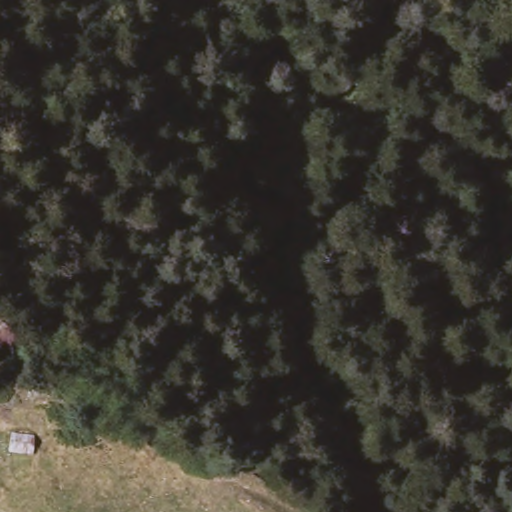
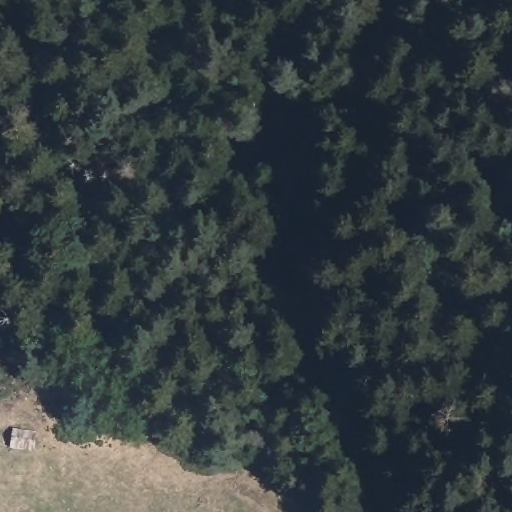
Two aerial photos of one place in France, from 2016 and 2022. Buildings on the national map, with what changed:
unchanged [(32,458),(4,455),(6,444),(7,430),(35,433),(32,458)]

